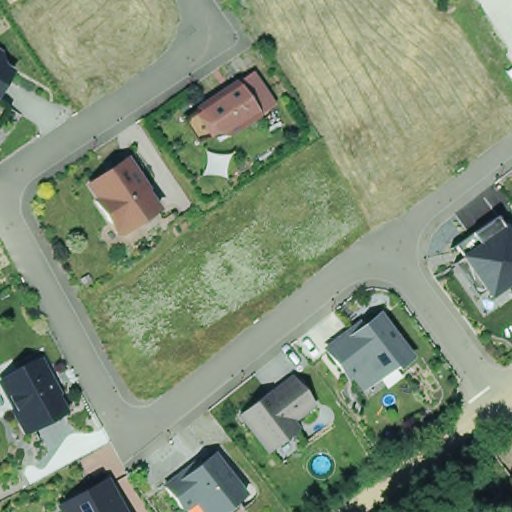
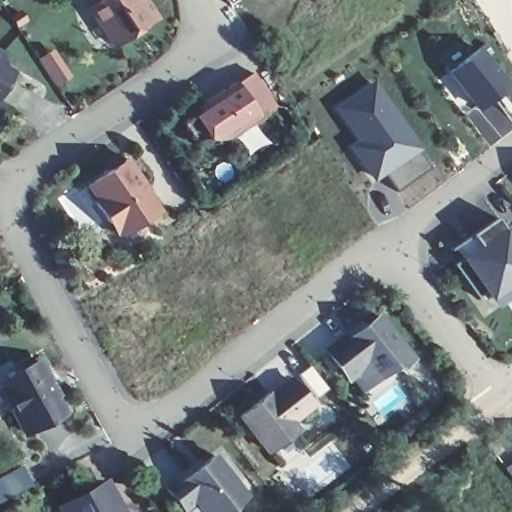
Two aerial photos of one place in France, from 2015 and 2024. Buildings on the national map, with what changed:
new [(114,48),(88,9),(98,2),(96,0),(143,0),(157,20),(114,48)]
new [(483,43),(508,83),(492,96),(473,109),(455,90),(451,93),(439,77),(483,43)]
unchanged [(23,67),(0,104),(0,52),(23,67)]
unchanged [(256,72),(276,105),(221,143),(200,107),(256,72)]
new [(397,189),(385,174),(374,182),(347,145),(354,139),(332,106),(375,77),(424,146),(419,150),(429,165),(397,189)]
new [(492,96),(512,121),(512,127),(490,145),(466,115),(473,109),(492,96)]
unchanged [(161,212),(120,238),(89,184),(129,154),(161,212)]
unchanged [(459,244),(499,218),(512,239),(512,289),(489,303),(484,294),(479,297),(456,265),(464,259),(459,244)]
unchanged [(383,313),(416,361),(365,394),(354,378),(348,381),(327,351),(383,313)]
unchanged [(46,360),(71,414),(25,437),(0,380),(0,378),(46,360)]
unchanged [(295,377),(317,409),(298,422),(302,430),(268,453),(243,417),(295,377)]
unchanged [(216,452),(247,495),(237,503),(243,512),(188,512),(166,488),(216,452)]
unchanged [(112,482),(127,512),(66,512),(62,503),(112,482)]

